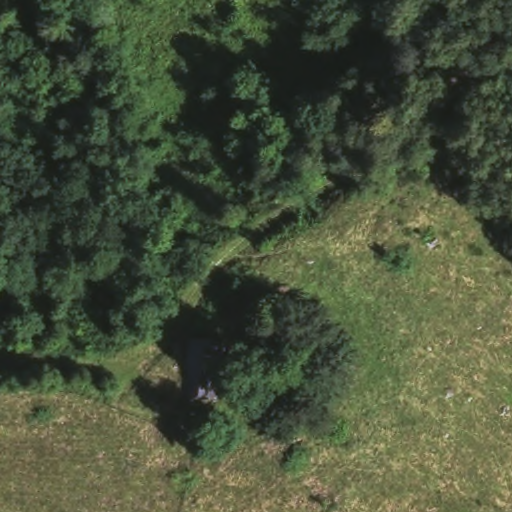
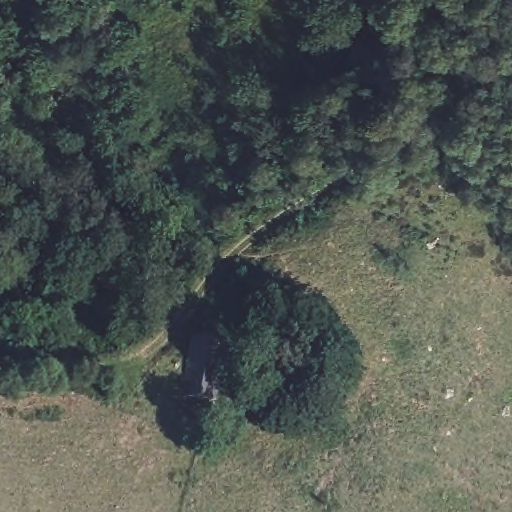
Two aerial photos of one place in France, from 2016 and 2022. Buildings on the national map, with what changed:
unchanged [(207,338),(202,402),(179,400),(186,336),(207,338)]

